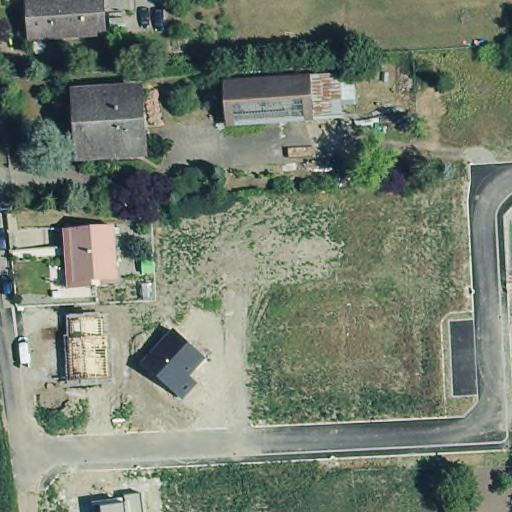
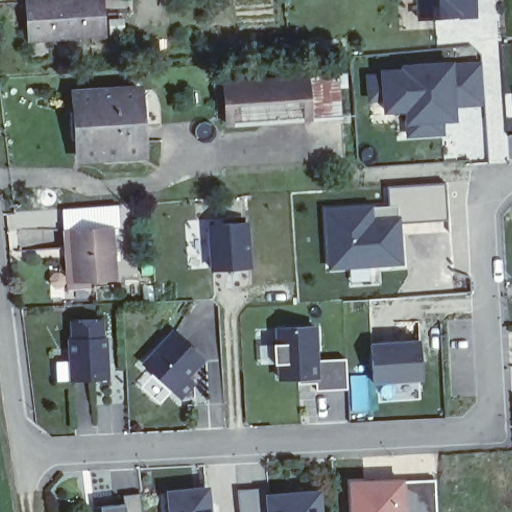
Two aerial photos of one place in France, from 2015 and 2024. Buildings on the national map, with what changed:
unchanged [(27,40),(25,0),(100,0),(102,35),(27,40)]
new [(419,18),(418,0),(478,0),(478,19),(419,18)]
new [(453,104),(453,108),(440,109),(441,133),(410,134),(408,108),(386,109),(384,72),(405,71),(405,67),(482,62),(485,102),(453,104)]
unchanged [(230,85),(312,80),(336,79),(338,119),(315,120),(232,126),(230,85)]
unchanged [(140,89),(144,151),(80,156),(77,92),(140,89)]
demolished [(231,151),(258,150),(260,144),(304,141),(305,172),(235,176),(231,151)]
new [(390,204),(388,190),(446,182),(450,234),(405,236),(407,268),(325,270),(320,206),(390,204)]
unchanged [(79,277),(73,225),(72,220),(115,215),(116,220),(122,273),(79,277)]
new [(253,270),(210,272),(206,225),(250,221),(253,270)]
unchanged [(103,319),(105,338),(110,337),(112,379),(70,381),(69,338),(71,338),(70,320),(103,319)]
new [(317,391),(316,384),(298,385),(298,380),(278,381),(275,327),(317,325),(320,360),(346,359),(348,389),(317,391)]
unchanged [(173,331),(207,359),(190,378),(197,383),(183,400),(141,364),(173,331)]
new [(423,382),(373,385),(370,342),(421,340),(423,382)]
new [(434,477),(437,512),(351,512),(348,480),(434,477)]
new [(213,512),(169,512),(166,491),(210,486),(213,512)]
new [(238,489),(268,486),(270,495),(322,490),(324,512),(240,512),(238,489)]
unchanged [(143,512),(103,512),(102,507),(126,505),(125,495),(141,493),(143,512)]

